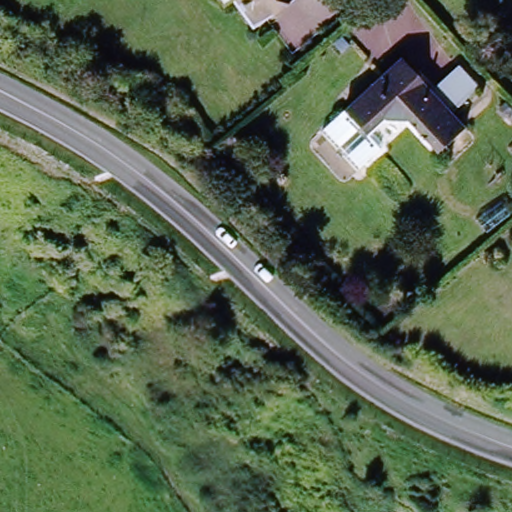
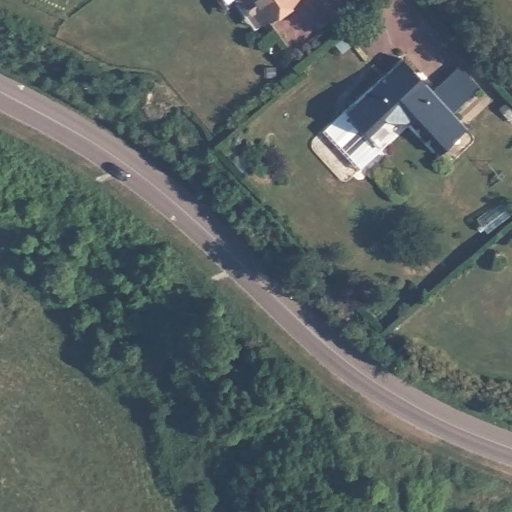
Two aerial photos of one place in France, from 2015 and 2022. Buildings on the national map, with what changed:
unchanged [(255,25),(238,0),(291,0),(255,25)]
unchanged [(482,88),(453,111),(467,127),(437,152),(421,133),(396,130),(379,145),(345,105),(405,55),(434,89),(462,65),(482,88)]

